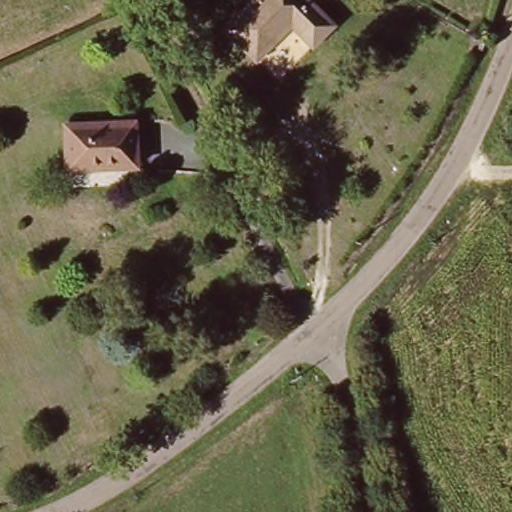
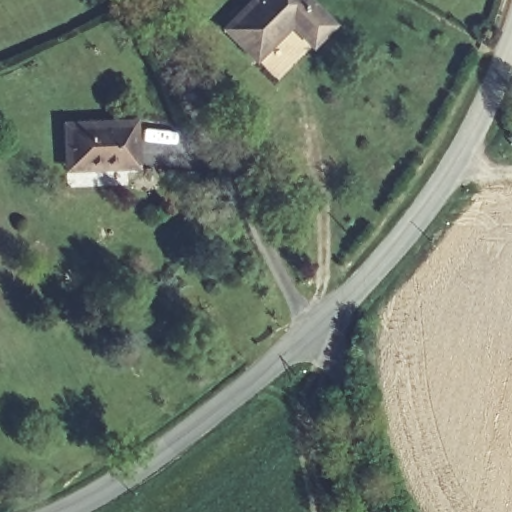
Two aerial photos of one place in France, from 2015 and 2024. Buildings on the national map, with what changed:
unchanged [(222,27),(252,0),(307,0),(334,29),(311,49),(292,30),(254,62),(222,27)]
unchanged [(132,167),(129,167),(129,171),(66,174),(62,131),(112,127),(128,126),(131,164),(132,167)]

